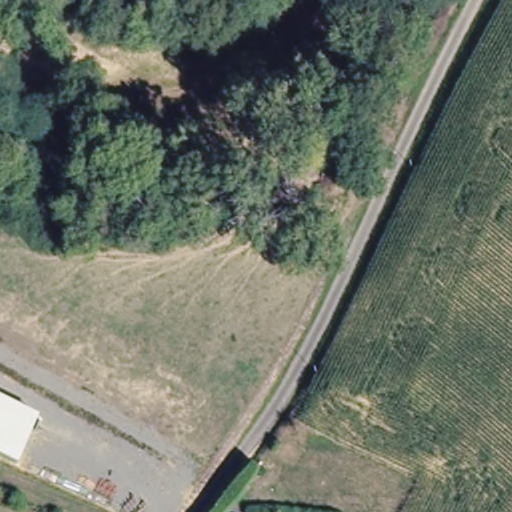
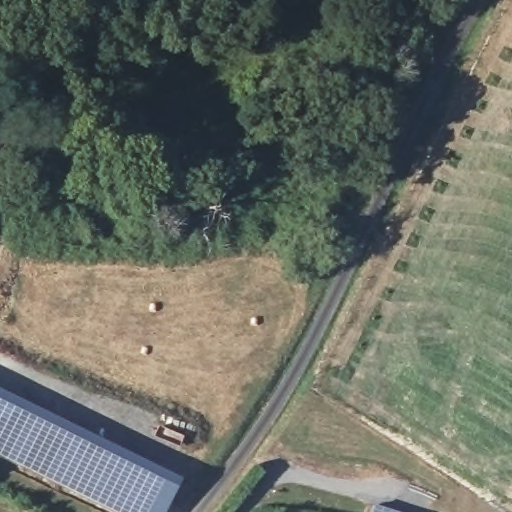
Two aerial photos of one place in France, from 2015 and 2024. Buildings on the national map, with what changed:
new [(0,401),(0,391),(182,481),(166,512),(115,512),(19,463),(39,420),(0,401)]
new [(17,466),(0,457),(0,401),(39,420),(17,466)]
unchanged [(375,511),(380,512),(375,512),(375,511)]

